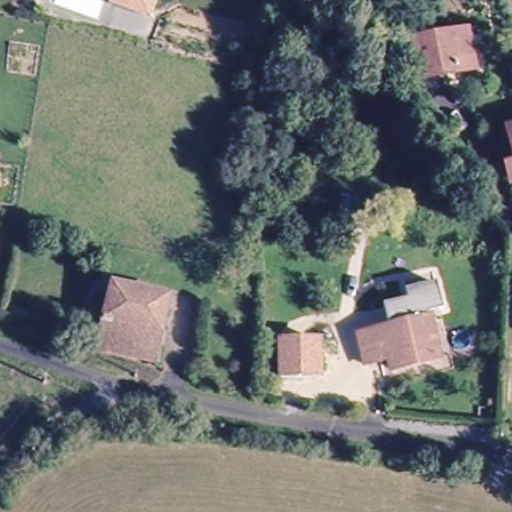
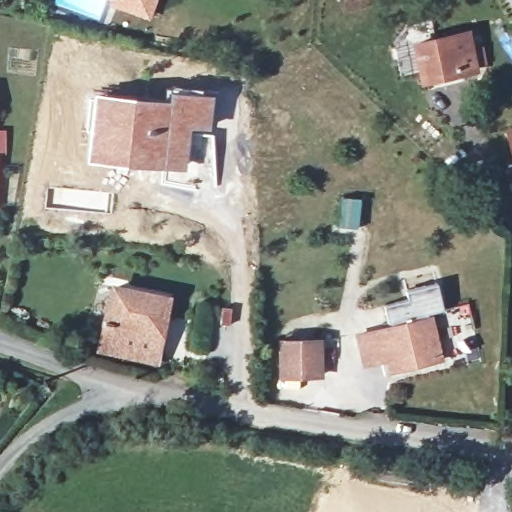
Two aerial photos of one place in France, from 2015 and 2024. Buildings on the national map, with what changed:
unchanged [(119,0),(156,0),(153,11),(119,0)]
unchanged [(478,74),(422,85),(409,39),(468,26),(478,74)]
new [(210,129),(190,128),(185,170),(86,161),(93,91),(168,98),(169,90),(214,93),(210,129)]
unchanged [(511,136),(512,136),(512,142),(511,136)]
unchanged [(510,175),(512,174),(512,182),(510,175)]
unchanged [(158,352),(155,351),(152,365),(94,354),(95,348),(108,285),(169,296),(158,352)]
unchanged [(429,366),(381,376),(378,362),(355,367),(349,339),(382,332),(377,310),(401,305),(399,296),(430,290),(436,317),(419,320),(419,324),(421,324),(429,366)]
unchanged [(274,382),(272,347),(313,345),(314,380),(274,382)]

